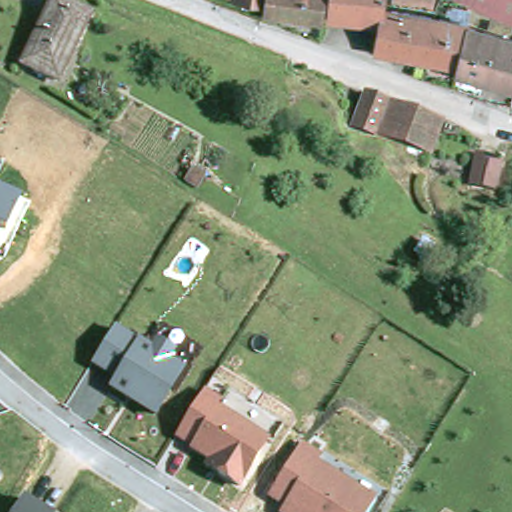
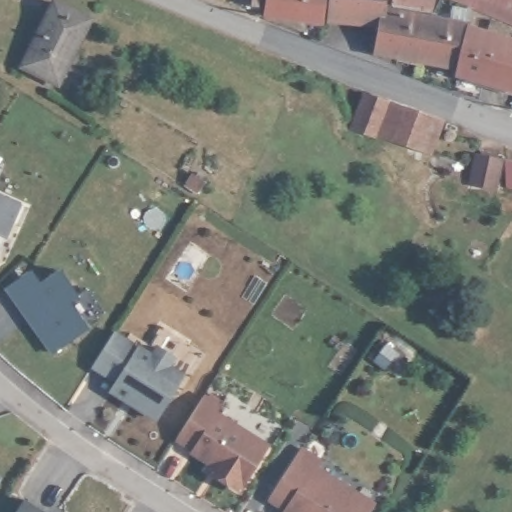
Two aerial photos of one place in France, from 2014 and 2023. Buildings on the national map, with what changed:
unchanged [(207,0),(205,5),(194,0),(207,0)]
unchanged [(233,16),(237,0),(264,0),(260,21),(233,16)]
unchanged [(324,0),(320,30),(264,22),(267,0),(324,0)]
unchanged [(380,15),(377,30),(327,25),(331,0),(382,0),(380,12),(380,15)]
unchanged [(382,0),(423,0),(444,3),(436,20),(433,21),(380,12),(382,0)]
unchanged [(512,0),(512,28),(449,0),(512,0)]
unchanged [(87,24),(72,54),(67,51),(52,82),(20,66),(52,7),(87,24)]
unchanged [(461,38),(456,75),(374,57),(377,30),(380,15),(462,33),(461,38)]
unchanged [(461,38),(512,53),(512,99),(455,82),(456,75),(461,38)]
unchanged [(352,124),(369,90),(394,100),(379,135),(352,124)]
unchanged [(409,107),(429,114),(449,121),(442,140),(435,158),(379,135),(394,100),(409,107)]
unchanged [(497,185),(473,178),(482,151),(505,158),(497,185)]
new [(512,191),(507,190),(510,161),(512,161),(512,191)]
unchanged [(22,201),(7,235),(0,233),(0,191),(22,201)]
new [(89,326),(52,351),(7,287),(32,267),(40,279),(60,266),(80,293),(70,299),(89,326)]
unchanged [(137,340),(149,348),(155,339),(170,348),(165,357),(180,366),(151,407),(109,381),(115,373),(89,357),(102,338),(110,324),(137,340)]
unchanged [(228,404),(222,411),(271,440),(240,491),(171,442),(204,392),(228,404)]
unchanged [(299,438),(317,449),(313,455),(350,477),(347,482),(369,495),(357,512),(304,512),(284,499),(285,497),(267,486),(299,438)]
unchanged [(2,476),(0,479),(0,474),(2,476)]
unchanged [(53,512),(15,512),(25,495),(53,512)]

